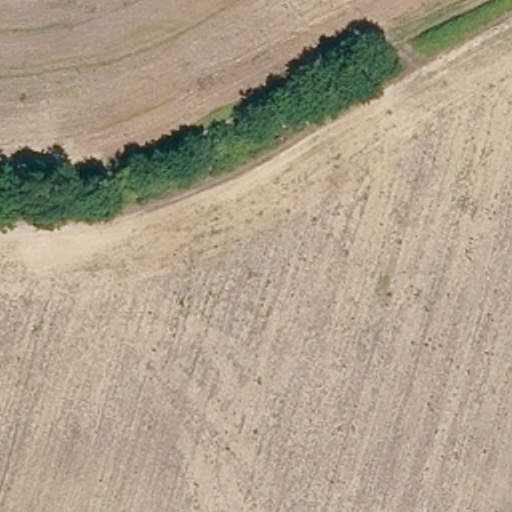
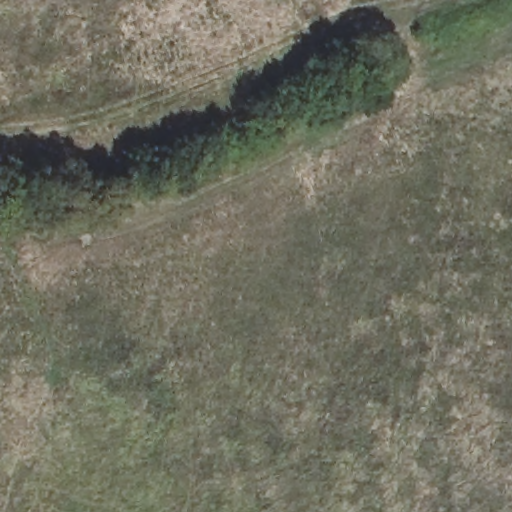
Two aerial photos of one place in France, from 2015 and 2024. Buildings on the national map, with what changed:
[]

